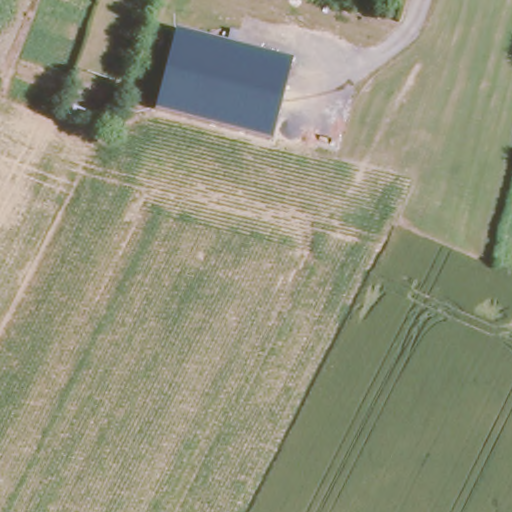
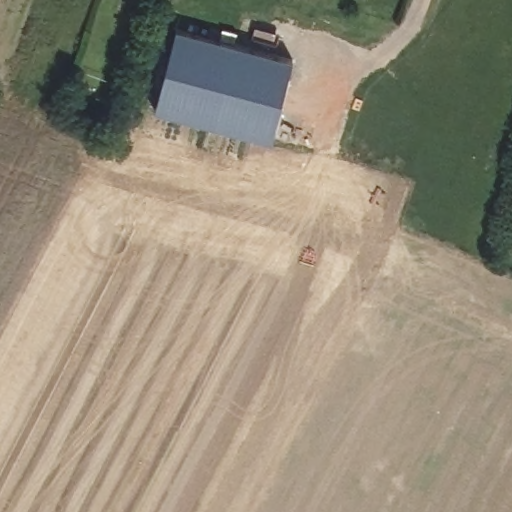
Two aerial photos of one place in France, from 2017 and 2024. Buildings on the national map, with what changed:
unchanged [(295,59),(274,140),(155,109),(176,29),(295,59)]

